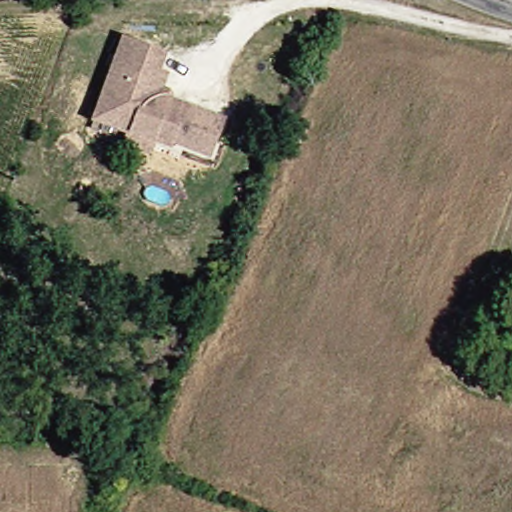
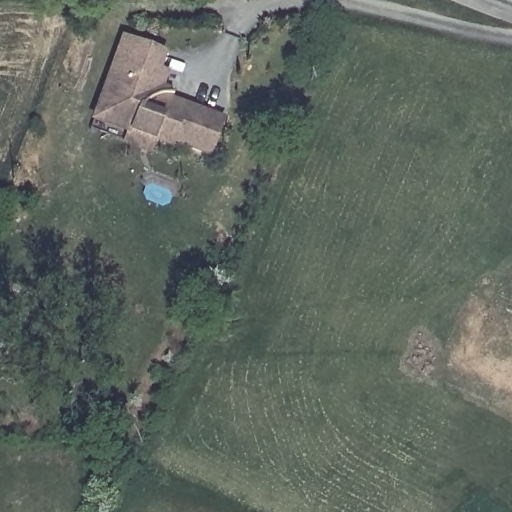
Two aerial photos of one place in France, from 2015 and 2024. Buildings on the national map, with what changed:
unchanged [(116,136),(121,126),(123,120),(97,109),(115,67),(109,64),(122,32),(163,49),(147,88),(220,119),(205,156),(167,139),(165,144),(150,138),(146,151),(116,136)]

